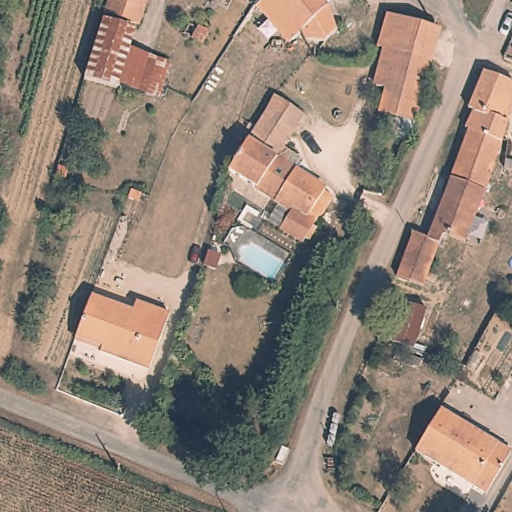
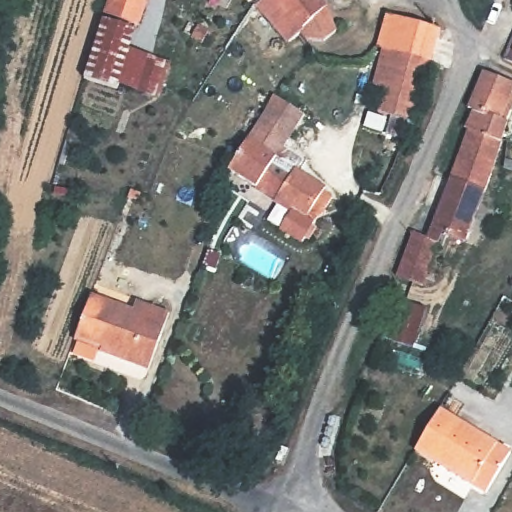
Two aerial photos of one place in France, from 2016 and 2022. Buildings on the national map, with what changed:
unchanged [(132,37),(99,24),(109,0),(146,0),(132,37)]
unchanged [(266,0),(308,0),(285,17),(281,13),(269,23),(256,9),(266,0)]
unchanged [(297,52),(292,43),(301,37),(285,17),(308,0),(320,0),(335,20),(342,30),(311,50),(310,49),(299,56),(297,52)]
unchanged [(382,42),(377,41),(387,9),(436,24),(429,57),(391,45),(382,42)]
unchanged [(112,88),(110,93),(81,83),(100,29),(130,41),(123,60),(164,76),(153,104),(112,88)]
unchanged [(419,95),(381,85),(371,83),(382,42),(391,45),(429,57),(419,95)]
unchanged [(466,126),(472,110),(467,108),(481,70),(506,78),(512,80),(512,93),(503,117),(510,119),(503,140),(501,139),(471,128),(466,126)]
unchanged [(381,85),(419,95),(409,137),(386,131),(391,112),(374,108),(381,85)]
unchanged [(233,166),(238,155),(244,143),(249,136),(248,136),(267,103),(273,91),(303,112),(282,143),(302,157),(296,166),(321,182),(320,184),(331,191),(323,204),(323,207),(317,215),(314,217),(311,221),(315,224),(307,236),(303,233),(300,237),(279,223),(291,205),(233,166)]
unchanged [(489,176),(458,163),(471,128),(501,139),(489,176)]
unchanged [(466,241),(442,233),(420,284),(410,280),(395,273),(423,207),(438,213),(458,163),(489,176),(466,241)]
unchanged [(138,295),(170,308),(148,363),(102,345),(104,339),(78,329),(95,288),(134,305),(138,295)]
unchanged [(411,350),(390,340),(406,303),(429,313),(411,350)]
unchanged [(438,407),(506,447),(485,490),(417,451),(438,407)]

